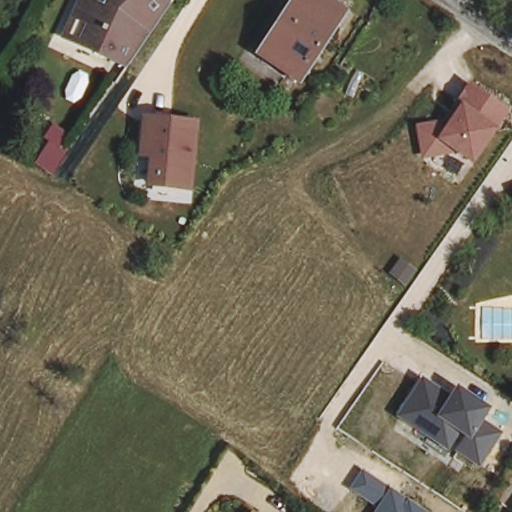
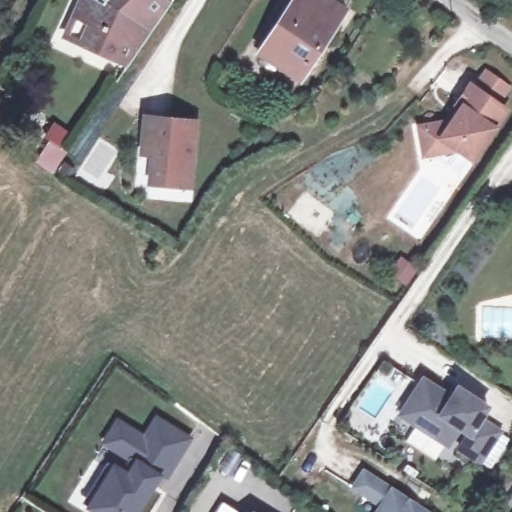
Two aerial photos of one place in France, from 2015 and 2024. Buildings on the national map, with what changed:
unchanged [(157,0),(162,5),(117,69),(103,59),(69,42),(53,35),(62,15),(70,0),(157,0)]
unchanged [(258,51),(295,0),(325,0),(342,12),(296,78),(258,51)]
unchanged [(512,110),(497,127),(472,162),(456,151),(422,158),(417,124),(452,120),(458,110),(453,106),(472,82),(512,110)]
unchanged [(147,181),(150,155),(139,154),(142,116),(193,120),(188,185),(147,181)]
new [(57,142),(52,139),(59,129),(73,138),(66,149),(70,152),(64,161),(57,171),(44,162),(50,152),(57,142)]
unchanged [(422,375),(452,392),(457,384),(491,408),(484,420),(502,432),(479,467),(455,450),(463,436),(459,433),(449,450),(397,415),(422,375)]
new [(119,463),(134,472),(141,460),(109,440),(122,418),(149,435),(161,415),(194,435),(175,466),(170,463),(164,473),(154,468),(149,477),(157,482),(143,506),(134,500),(126,512),(107,512),(94,504),(119,463)]
unchanged [(362,469),(428,512),(374,512),(377,508),(349,488),(362,469)]

